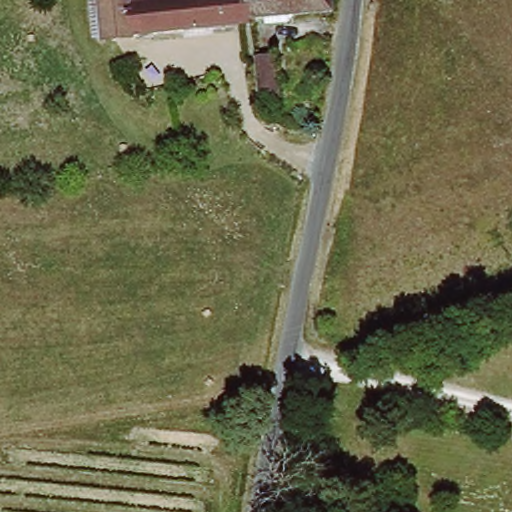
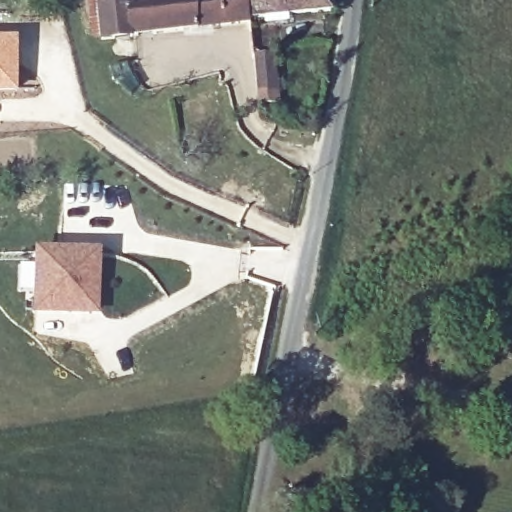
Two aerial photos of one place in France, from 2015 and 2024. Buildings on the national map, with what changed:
unchanged [(96,0),(130,0),(132,40),(99,43),(96,0)]
unchanged [(249,0),(251,21),(251,26),(132,40),(130,0),(249,0)]
unchanged [(251,21),(249,0),(330,0),(332,11),(251,21)]
new [(17,95),(0,94),(0,38),(17,38),(17,95)]
unchanged [(254,54),(273,53),(277,100),(258,101),(254,54)]
new [(96,252),(99,311),(39,314),(37,254),(96,252)]

